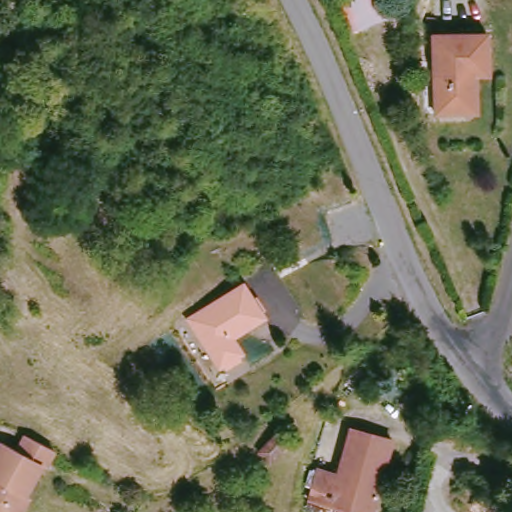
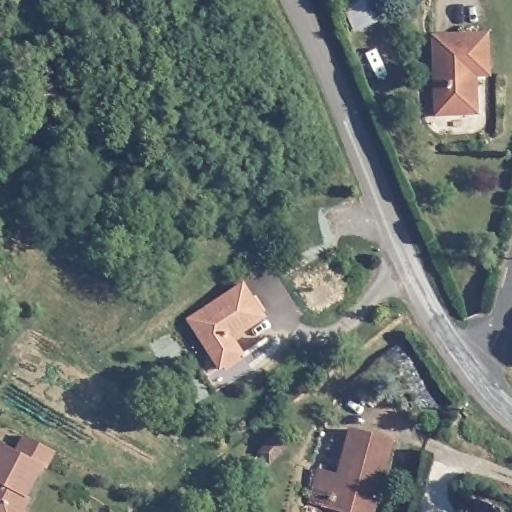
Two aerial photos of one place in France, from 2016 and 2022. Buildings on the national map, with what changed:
unchanged [(390,14),(355,29),(343,0),(384,0),(390,14)]
unchanged [(441,115),(439,35),(492,34),(494,67),(473,68),(473,75),(475,113),(441,115)]
unchanged [(264,317),(232,337),(242,353),(220,367),(189,320),(243,285),(264,317)]
unchanged [(320,467),(340,472),(350,429),(392,440),(373,512),(351,512),(310,501),(313,490),(309,488),(315,466),(320,467)]
unchanged [(260,452),(276,435),(287,444),(270,462),(260,452)]
unchanged [(45,467),(42,465),(25,496),(29,497),(22,512),(0,512),(0,443),(0,442),(17,451),(25,436),(54,450),(45,467)]

